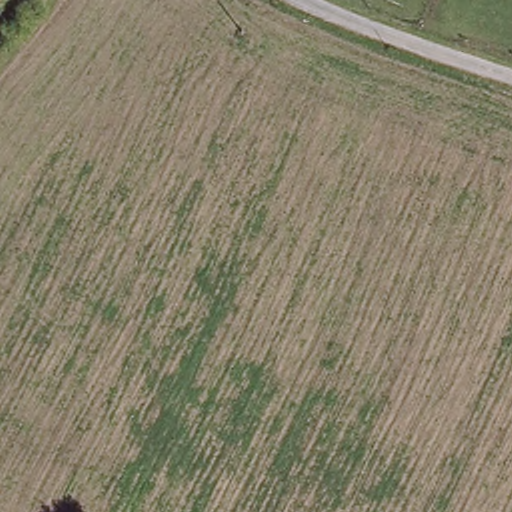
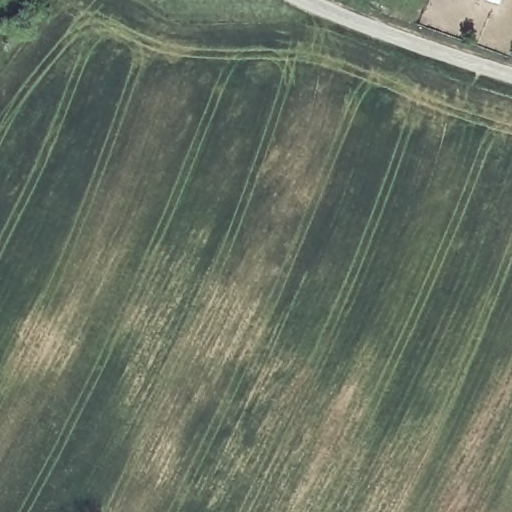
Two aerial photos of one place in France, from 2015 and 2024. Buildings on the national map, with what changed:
[]

